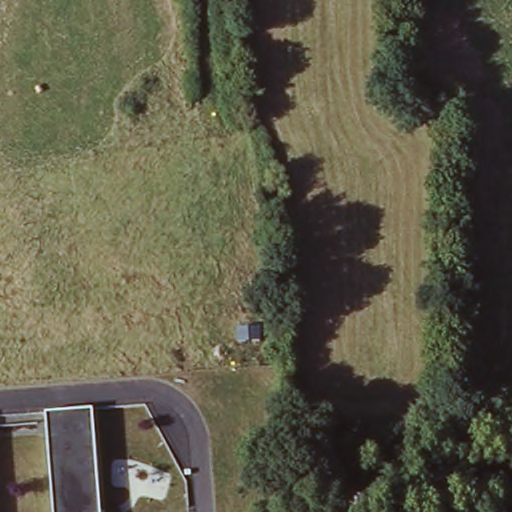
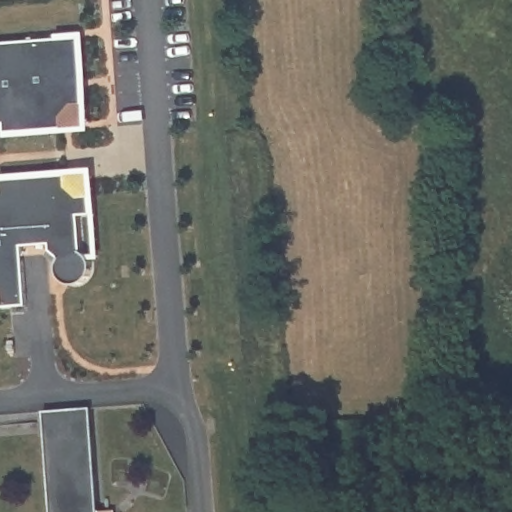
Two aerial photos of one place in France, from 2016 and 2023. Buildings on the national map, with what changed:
new [(89,124),(83,130),(64,130),(5,133),(4,122),(0,122),(0,43),(81,37),(89,124)]
new [(1,179),(92,171),(100,255),(89,256),(93,265),(93,275),(81,284),(67,281),(59,271),(61,258),(54,252),(51,244),(24,246),(28,305),(6,308),(5,293),(0,294),(0,194),(4,194),(1,179)]
unchanged [(94,410),(103,512),(56,512),(49,413),(94,410)]

